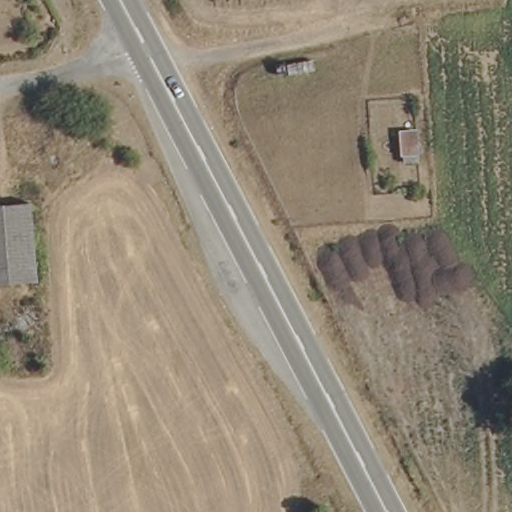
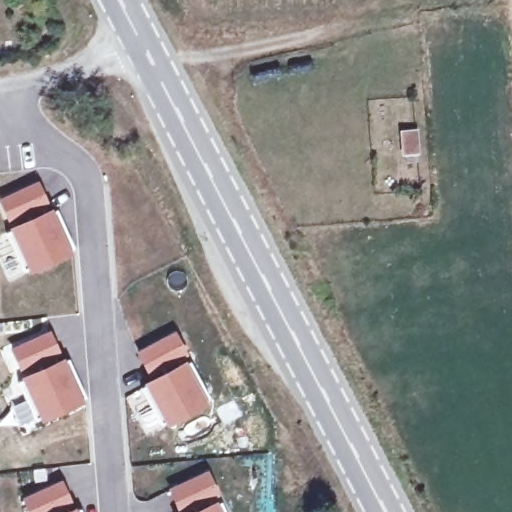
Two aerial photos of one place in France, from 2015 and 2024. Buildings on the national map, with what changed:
unchanged [(397,135),(414,134),(415,166),(400,168),(397,135)]
new [(7,231),(14,228),(0,199),(35,182),(49,211),(54,209),(73,247),(25,268),(7,231)]
new [(176,329),(190,358),(149,379),(135,351),(176,329)]
new [(41,423),(20,377),(10,349),(49,330),(82,403),(41,423)]
new [(142,387),(140,384),(149,379),(190,358),(212,401),(197,411),(147,434),(125,397),(142,387)]
new [(209,468),(222,499),(191,512),(176,512),(165,487),(209,468)]
new [(20,499),(61,479),(75,508),(77,512),(26,512),(20,499)]
new [(222,499),(228,512),(191,512),(222,499)]

